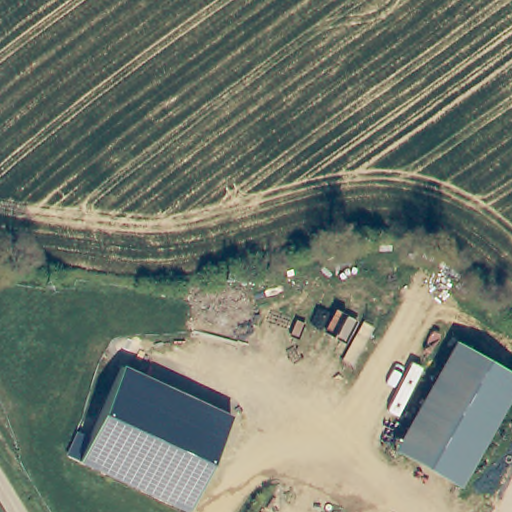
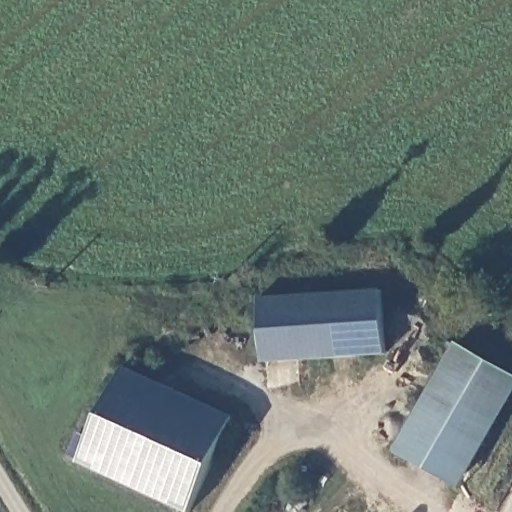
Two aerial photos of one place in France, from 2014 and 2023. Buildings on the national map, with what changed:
new [(385,356),(261,364),(259,299),(380,291),(385,356)]
unchanged [(453,345),(512,375),(512,395),(458,488),(393,450),(453,345)]
unchanged [(189,512),(186,512),(79,462),(125,368),(234,418),(189,512)]
demolished [(261,495),(262,494),(301,512),(253,512),(261,495)]

